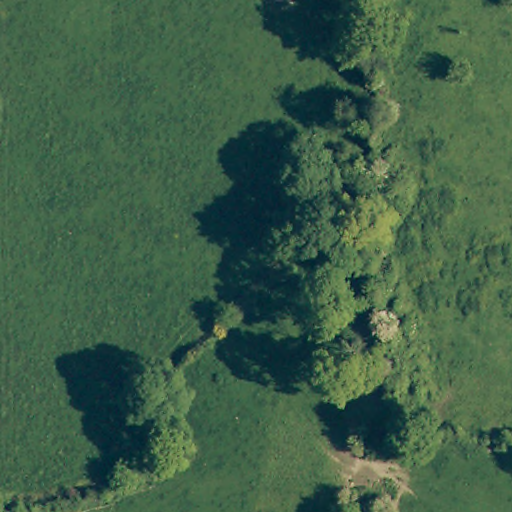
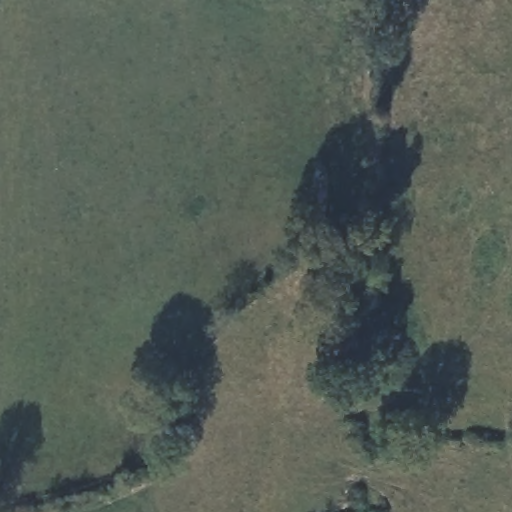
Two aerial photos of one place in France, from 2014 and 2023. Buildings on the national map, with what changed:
unchanged [(367,71),(340,70),(341,0),(368,0),(367,71)]

